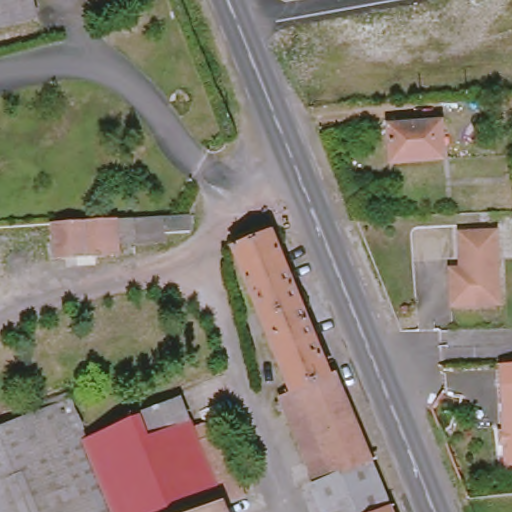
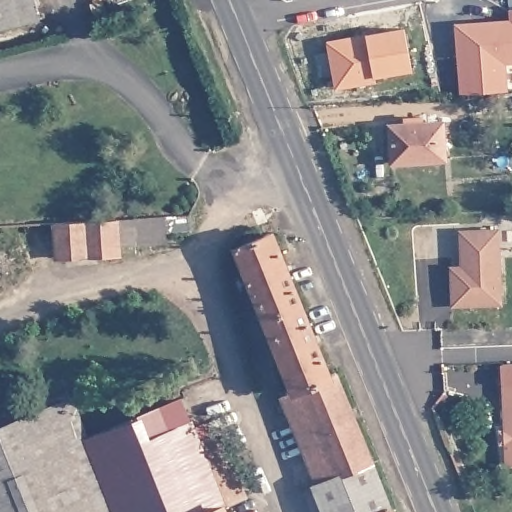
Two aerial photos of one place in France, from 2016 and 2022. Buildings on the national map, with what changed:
unchanged [(38,0),(43,20),(0,30),(0,0),(38,0)]
new [(510,20),(509,9),(512,9),(512,61),(505,62),(506,90),(459,94),(454,24),(510,20)]
new [(366,40),(365,35),(406,29),(412,67),(372,72),(373,80),(336,85),(330,45),(366,40)]
unchanged [(395,160),(393,124),(445,124),(447,160),(395,160)]
unchanged [(190,230),(163,232),(163,236),(117,239),(117,220),(190,215),(190,230)]
unchanged [(117,239),(117,256),(57,260),(55,224),(117,220),(117,239)]
unchanged [(450,303),(451,266),(465,266),(465,258),(460,255),(460,230),(500,230),(500,304),(450,303)]
unchanged [(333,379),(297,393),(243,258),(240,250),(275,235),(333,379)]
unchanged [(508,440),(507,435),(504,431),(502,383),(501,361),(512,361),(512,465),(505,465),(504,442),(508,440)]
unchanged [(312,485),(315,484),(281,398),(297,393),(333,379),(340,377),(375,465),(394,511),(394,512),(322,512),(312,485)]
unchanged [(72,400),(90,442),(185,402),(197,431),(208,426),(212,437),(221,434),(247,496),(227,505),(230,512),(0,512),(0,430),(72,400)]

